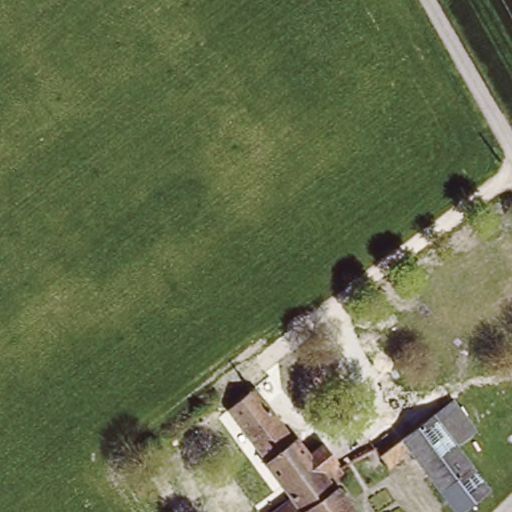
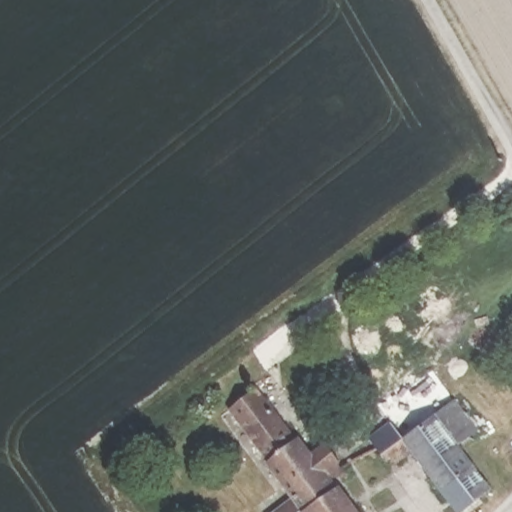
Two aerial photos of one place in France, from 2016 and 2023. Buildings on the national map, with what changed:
unchanged [(247,383),(305,454),(321,441),(335,459),(342,467),(327,479),(330,485),(297,508),(291,512),(267,512),(266,511),(287,495),(217,407),(247,383)]
unchanged [(453,399),(470,422),(458,441),(489,489),(462,509),(418,449),(393,466),(382,452),(453,399)]
unchanged [(335,482),(359,512),(301,512),(297,508),(330,485),(335,482)]

